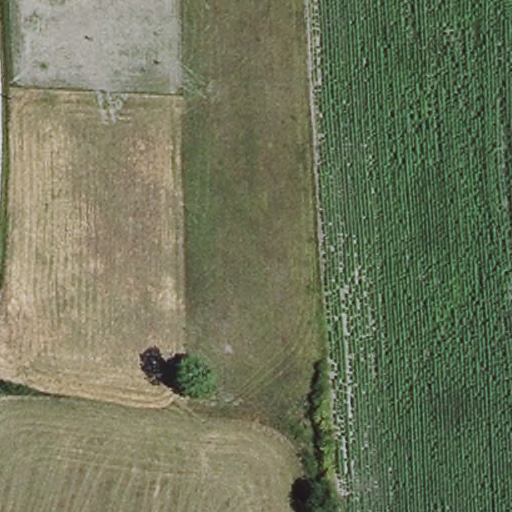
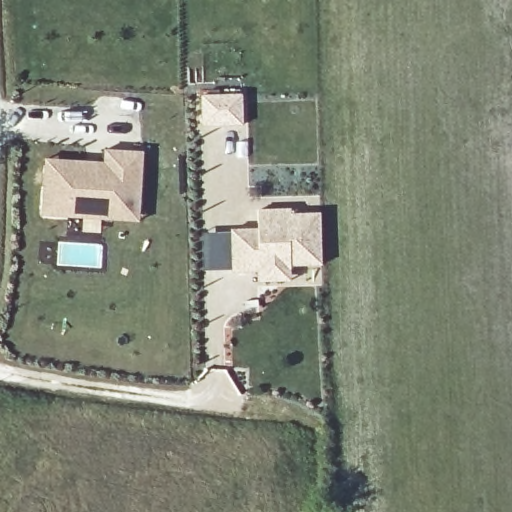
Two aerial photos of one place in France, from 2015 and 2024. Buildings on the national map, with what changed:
new [(200,96),(243,95),(244,125),(200,126),(200,96)]
new [(118,221),(45,218),(47,162),(48,156),(106,158),(106,151),(145,151),(142,216),(142,221),(118,221)]
new [(257,230),(257,210),(291,208),(292,215),(321,214),(322,265),(291,265),(292,281),(258,282),(257,271),(233,274),(231,231),(257,230)]

